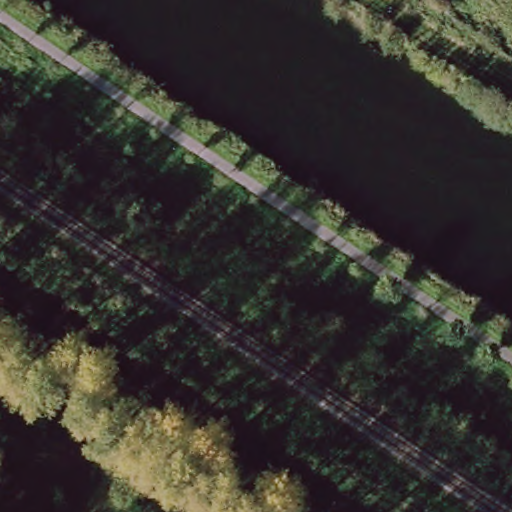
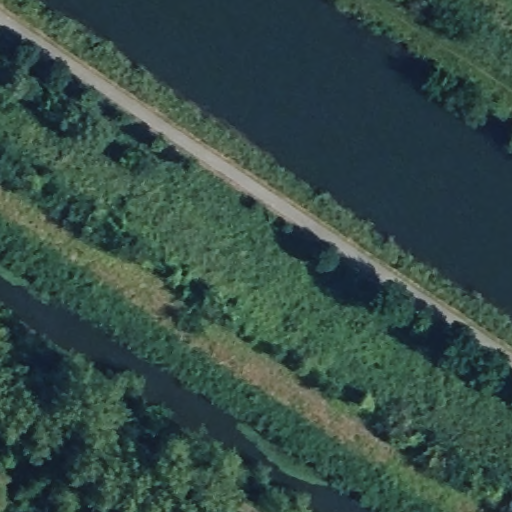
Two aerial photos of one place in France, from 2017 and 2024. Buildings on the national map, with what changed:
unchanged [(475,508),(465,500),(471,491),(482,499),(475,508)]

